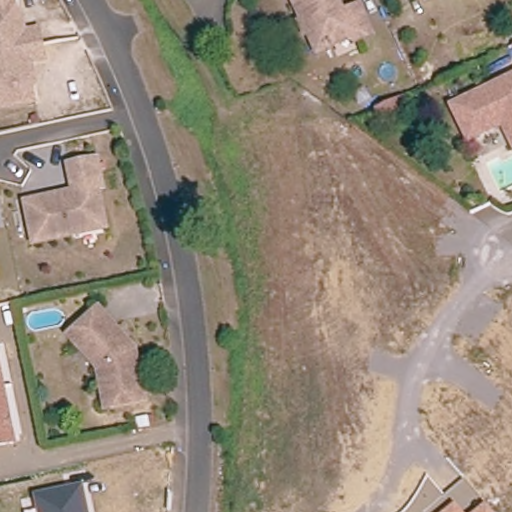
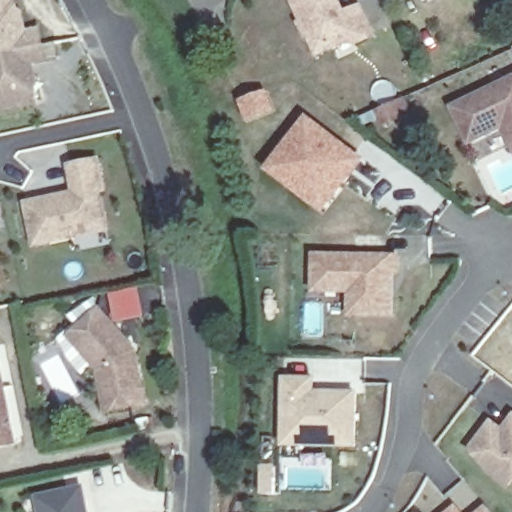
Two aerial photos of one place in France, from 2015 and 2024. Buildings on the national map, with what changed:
unchanged [(34,102),(0,109),(0,0),(13,0),(15,12),(19,11),(21,24),(24,34),(38,31),(41,46),(45,61),(30,65),(32,75),(35,86),(31,87),(34,102)]
unchanged [(340,16),(356,9),(368,37),(352,45),(350,40),(314,56),(289,0),(332,0),(340,16)]
unchanged [(508,140),(500,125),(466,140),(450,105),(512,76),(512,150),(508,140)]
new [(247,122),(239,100),(267,90),(276,111),(247,122)]
new [(366,160),(325,216),(263,171),(307,115),(366,160)]
unchanged [(101,194),(96,195),(104,231),(71,238),(71,241),(33,250),(25,209),(56,202),(66,200),(74,198),(68,171),(95,165),(101,194)]
new [(349,318),(349,293),(313,292),(313,254),(400,254),(400,275),(394,275),(394,317),(349,318)]
unchanged [(139,352),(150,403),(111,411),(103,371),(84,350),(74,338),(83,330),(104,311),(139,352)]
unchanged [(0,374),(13,443),(0,448),(0,374)]
new [(283,446),(283,377),(317,377),(316,390),(357,391),(357,448),(283,446)]
unchanged [(498,472),(500,470),(489,461),(491,458),(475,447),(495,420),(506,429),(510,425),(512,421),(512,482),(498,472)]
unchanged [(36,495),(84,486),(89,512),(33,512),(39,510),(36,495)]
unchanged [(462,512),(448,512),(457,505),(462,512)]
unchanged [(492,512),(478,512),(487,505),(492,512)]

